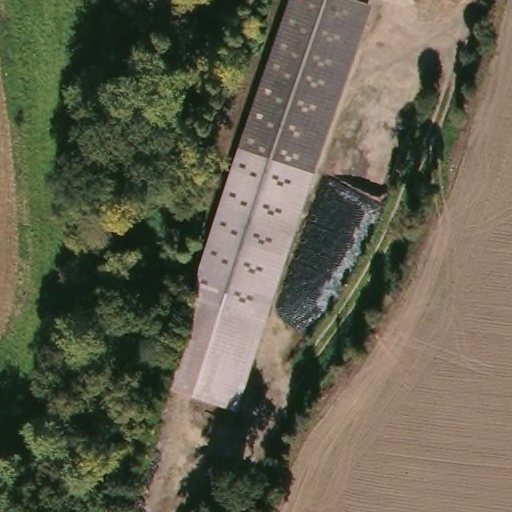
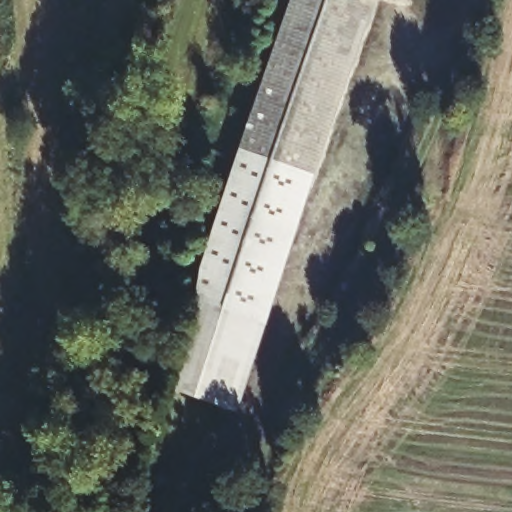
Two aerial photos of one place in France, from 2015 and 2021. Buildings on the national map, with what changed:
unchanged [(290,0),(357,0),(375,5),(237,411),(170,397),(290,0)]

